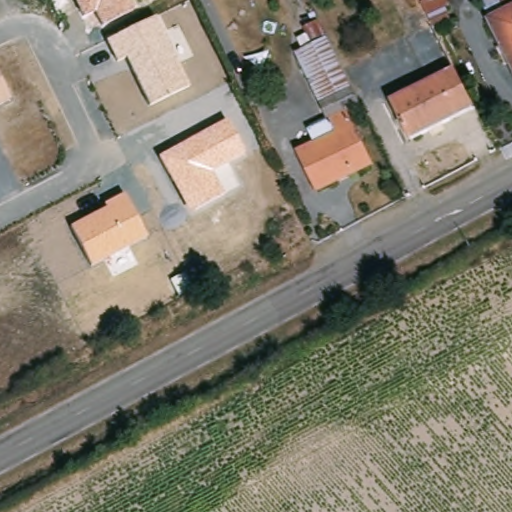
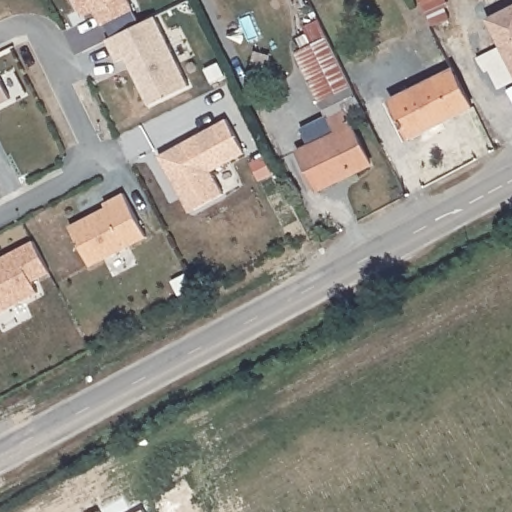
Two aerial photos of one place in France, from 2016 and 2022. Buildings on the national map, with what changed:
unchanged [(101,25),(95,10),(80,17),(73,0),(129,0),(133,10),(101,25)]
unchanged [(406,39),(424,26),(413,0),(440,0),(451,23),(434,32),(472,106),(408,137),(388,97),(427,82),(406,39)]
unchanged [(512,0),(512,75),(476,0),(512,0)]
unchanged [(156,17),(189,85),(148,106),(125,57),(115,62),(105,40),(156,17)]
unchanged [(330,92),(332,97),(316,105),(296,67),(289,52),(321,38),(325,46),(344,84),(330,92)]
unchanged [(11,100),(0,106),(0,78),(11,100)]
unchanged [(331,134),(316,105),(332,97),(330,92),(344,84),(357,108),(342,116),(368,166),(313,193),(304,176),(292,154),(300,150),(331,134)]
unchanged [(246,154),(212,172),(224,194),(189,213),(159,157),(227,118),(246,154)]
unchanged [(148,237),(90,267),(69,226),(104,207),(102,204),(124,192),(148,237)]
new [(33,241),(50,272),(32,281),(38,292),(0,312),(0,257),(33,241)]

